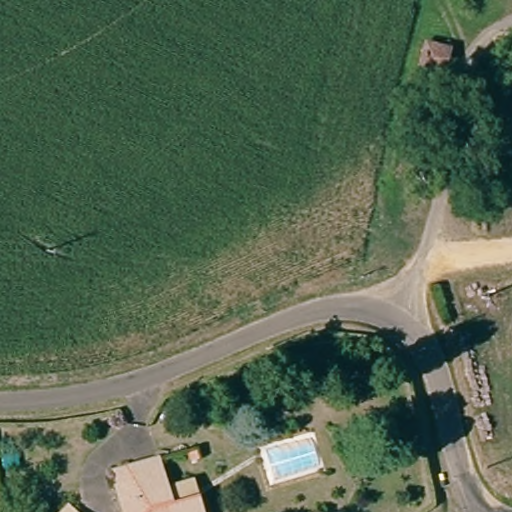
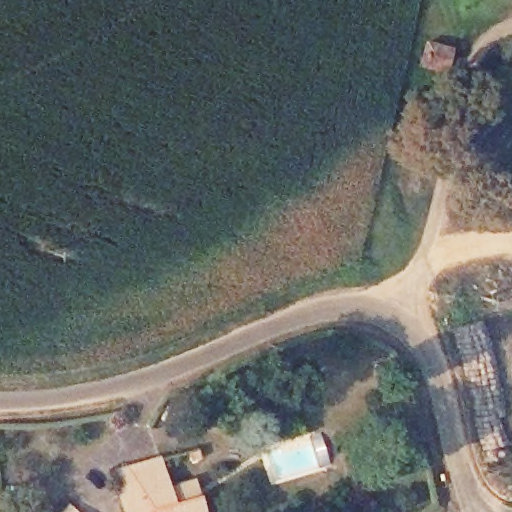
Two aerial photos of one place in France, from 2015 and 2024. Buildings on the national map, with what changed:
unchanged [(427,56),(451,60),(447,86),(423,83),(427,56)]
unchanged [(171,457),(185,454),(189,465),(175,470),(171,457)]
unchanged [(161,455),(168,481),(195,475),(201,512),(131,512),(121,465),(161,455)]
unchanged [(85,512),(53,512),(71,498),(85,512)]

